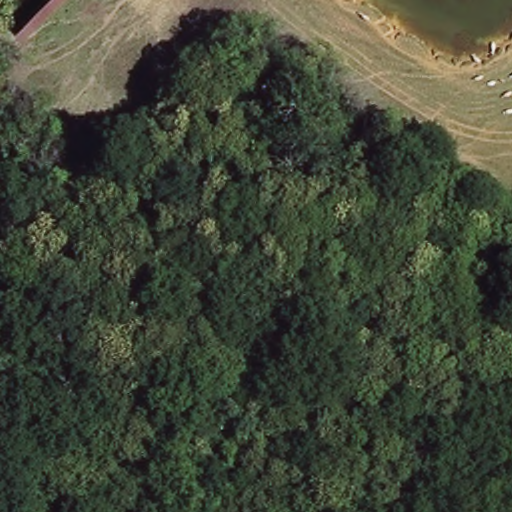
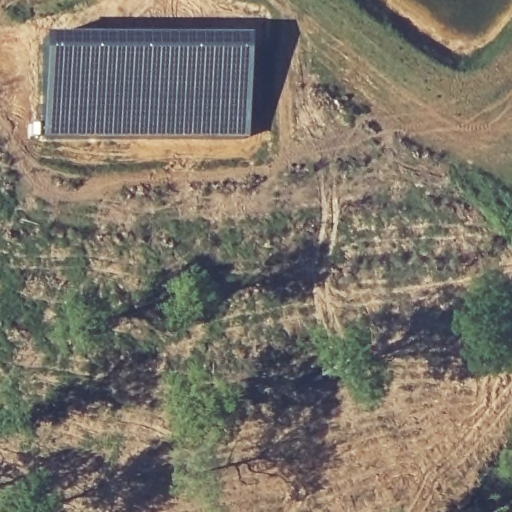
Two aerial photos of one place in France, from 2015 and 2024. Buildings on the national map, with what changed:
demolished [(44,0),(57,0),(21,35),(14,29),(44,0)]
new [(62,34),(246,34),(248,74),(246,138),(38,139),(38,36),(62,34)]

